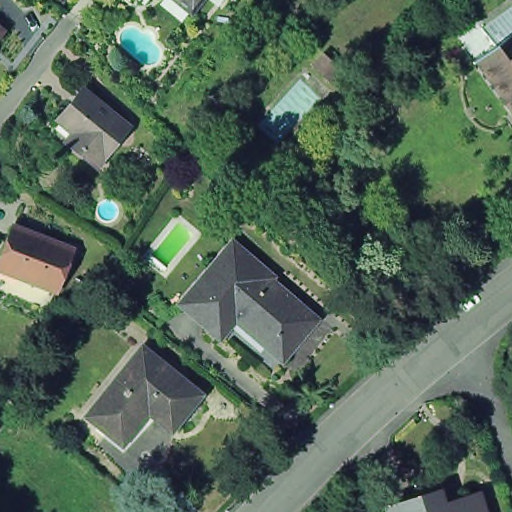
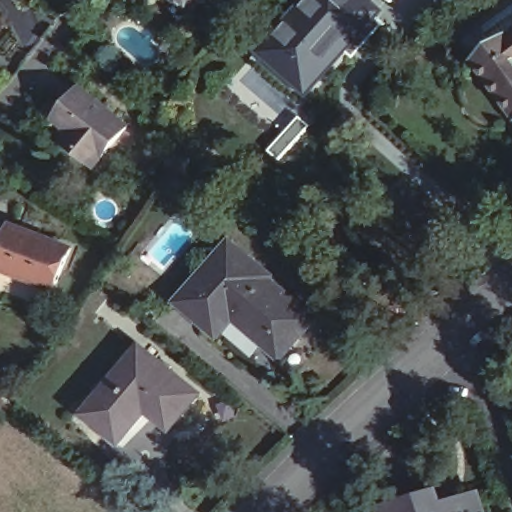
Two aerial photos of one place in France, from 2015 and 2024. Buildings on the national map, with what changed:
unchanged [(196,6),(188,0),(201,0),(196,6)]
new [(304,0),(372,0),(385,12),(379,19),(385,25),(355,59),(348,54),(309,100),(256,54),(304,0)]
new [(392,3),(389,0),(395,0),(392,3)]
unchanged [(486,29),(512,10),(512,35),(499,45),(486,29)]
unchanged [(0,37),(0,26),(5,31),(0,37)]
unchanged [(477,62),(499,45),(512,35),(512,108),(477,62)]
demolished [(322,52),(344,72),(334,83),(312,63),(322,52)]
unchanged [(77,134),(82,127),(80,126),(67,115),(70,111),(92,84),(137,122),(107,159),(104,162),(74,138),(77,134)]
unchanged [(17,221),(76,244),(60,285),(2,262),(17,221)]
unchanged [(236,236),(277,271),(275,274),(322,314),(287,355),(240,315),(224,333),(184,298),(236,236)]
unchanged [(112,426),(92,410),(147,343),(204,389),(176,424),(153,405),(137,425),(127,437),(112,426)]
unchanged [(444,506),(479,495),(484,512),(389,512),(388,509),(440,493),(444,506)]

